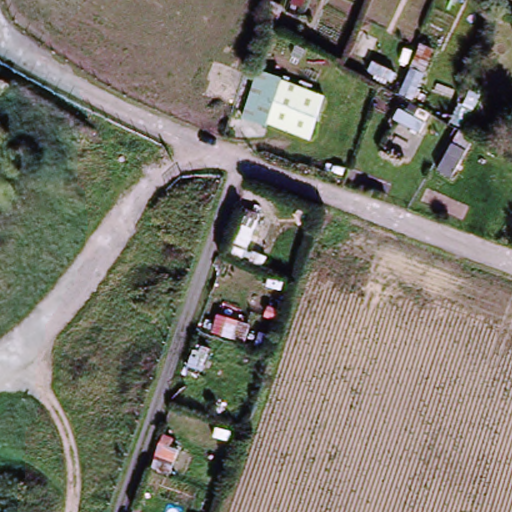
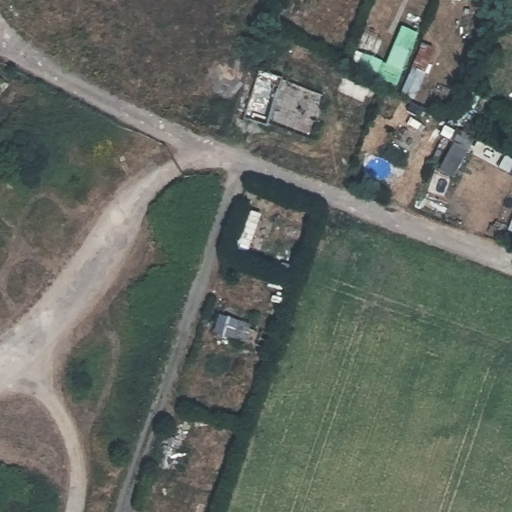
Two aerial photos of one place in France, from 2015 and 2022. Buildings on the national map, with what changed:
unchanged [(435,52),(411,101),(401,97),(423,46),(435,52)]
unchanged [(260,72),(283,80),(283,82),(326,97),(311,142),(268,126),(267,129),(243,121),(260,72)]
unchanged [(12,87),(4,99),(0,100),(0,82),(3,82),(12,87)]
unchanged [(460,107),(475,112),(474,117),(468,132),(452,122),(460,107)]
unchanged [(232,257),(247,212),(261,217),(255,235),(267,239),(257,265),(232,257)]
unchanged [(211,295),(255,309),(244,343),(200,328),(211,295)]

